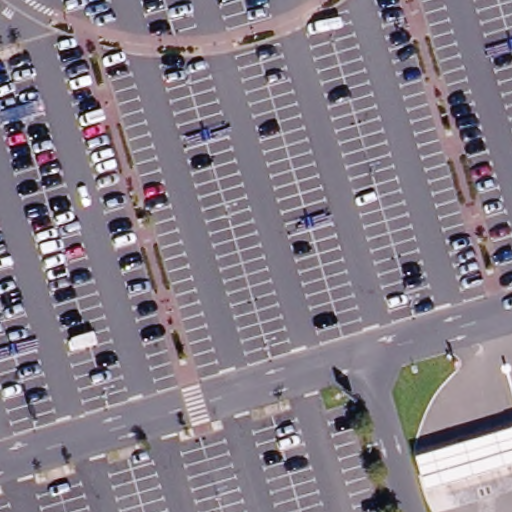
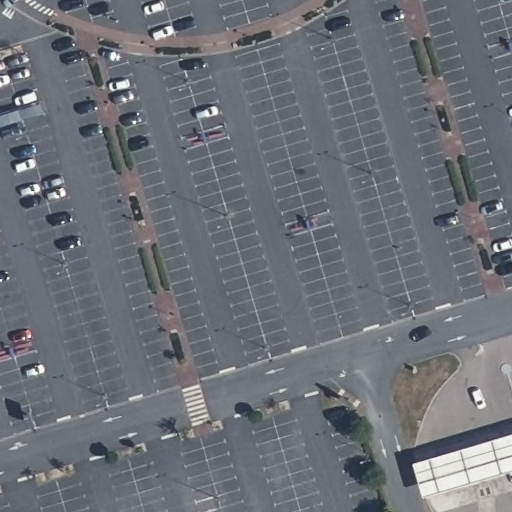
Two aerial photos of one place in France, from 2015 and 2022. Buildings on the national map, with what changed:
unchanged [(427,485),(417,452),(512,423),(512,459),(427,485)]

